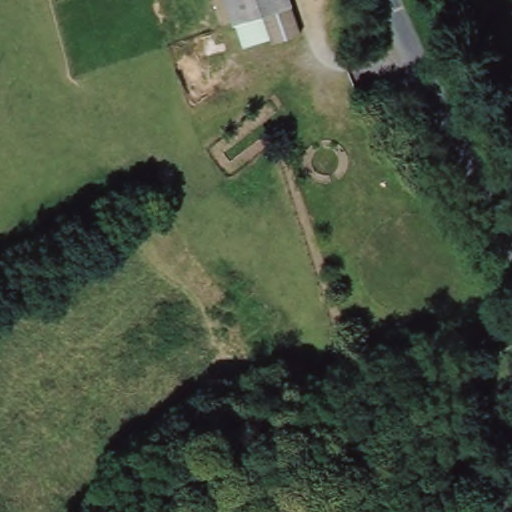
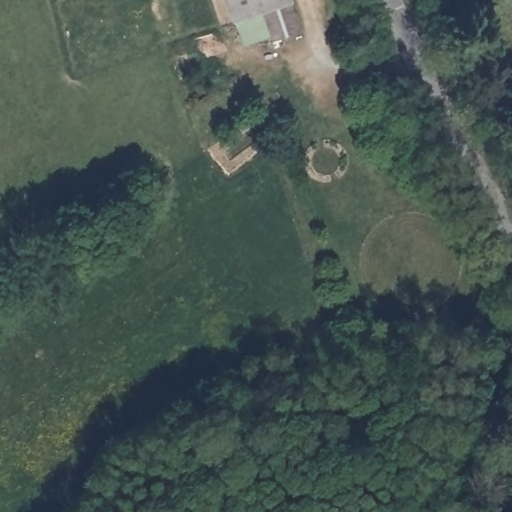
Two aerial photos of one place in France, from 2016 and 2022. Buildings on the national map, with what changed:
unchanged [(297,2),(307,33),(272,45),(261,17),(233,26),(225,0),(296,0),(297,2)]

